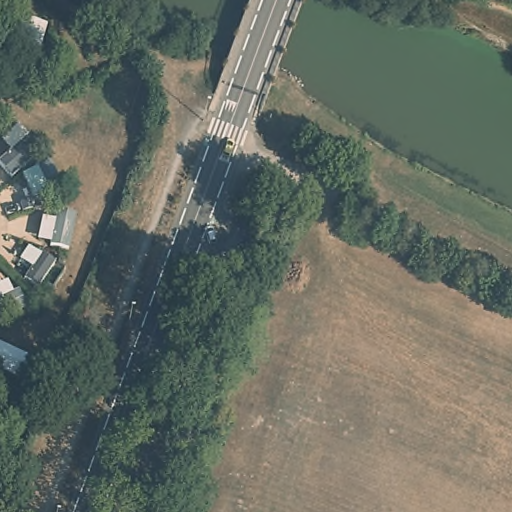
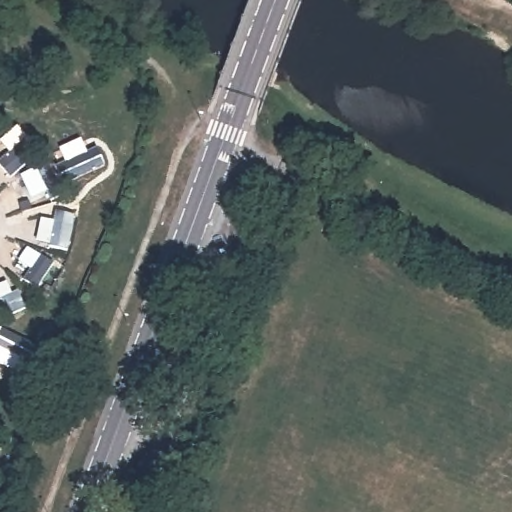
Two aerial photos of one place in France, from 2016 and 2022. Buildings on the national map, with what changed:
unchanged [(30,161),(0,139),(0,138),(9,128),(41,149),(30,161)]
unchanged [(62,185),(33,198),(23,174),(51,160),(62,185)]
unchanged [(59,206),(78,209),(71,239),(52,234),(59,206)]
unchanged [(55,263),(41,287),(27,279),(33,268),(21,260),(28,248),(55,263)]
unchanged [(5,319),(0,310),(0,288),(4,295),(19,290),(28,310),(5,319)]

